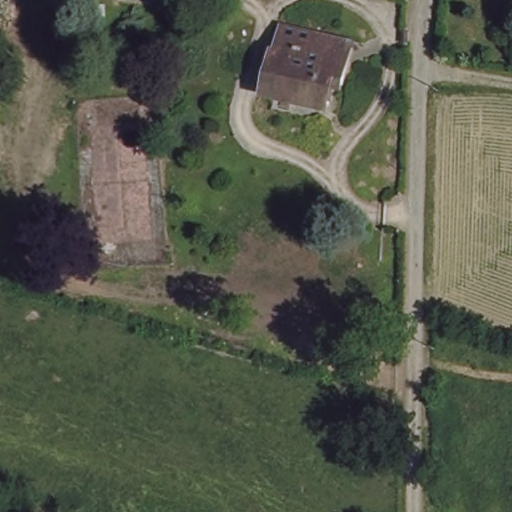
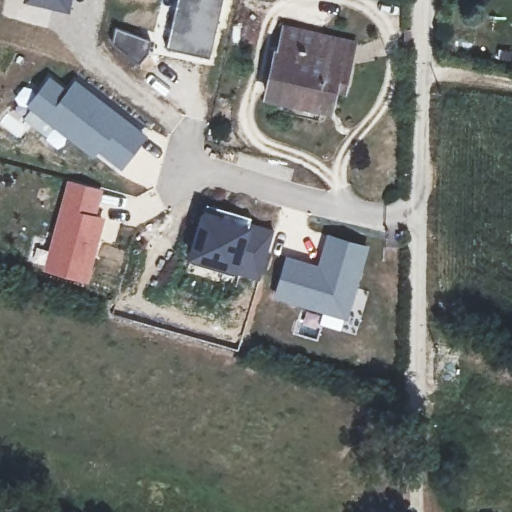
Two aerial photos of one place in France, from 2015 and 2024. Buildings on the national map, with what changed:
new [(74,0),(71,13),(24,1),(24,0),(74,0)]
new [(224,0),(212,59),(166,49),(177,0),(224,0)]
new [(115,26),(155,43),(139,65),(110,42),(115,26)]
unchanged [(276,59),(278,59),(285,31),(323,40),(354,47),(350,67),(345,90),(336,89),(331,111),(286,101),(267,98),(276,59)]
new [(30,109),(27,105),(50,74),(67,88),(75,78),(150,135),(120,169),(98,153),(94,159),(69,140),(60,150),(23,117),(30,109)]
new [(67,179),(103,188),(97,214),(107,217),(89,283),(42,269),(67,179)]
new [(205,202),(252,217),(252,220),(276,229),(262,279),(187,257),(205,202)]
new [(286,254),(317,264),(326,232),(372,245),(349,322),(274,298),(286,254)]

